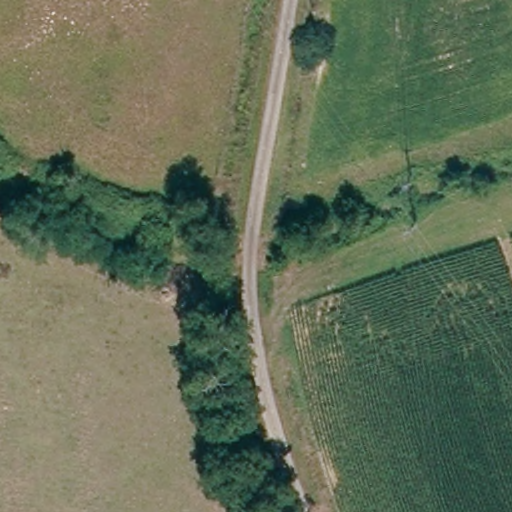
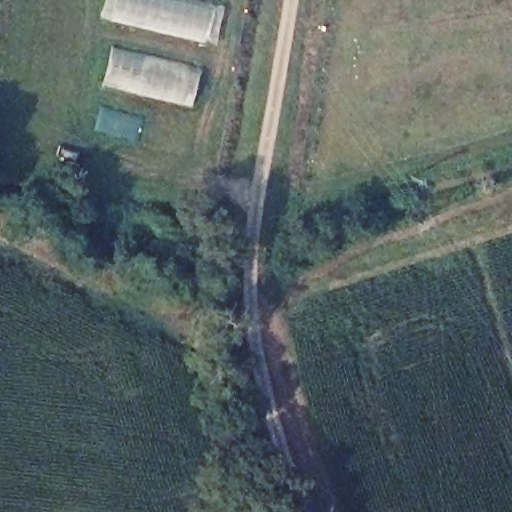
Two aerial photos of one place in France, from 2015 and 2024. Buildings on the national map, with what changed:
new [(207,42),(108,20),(112,0),(211,0),(216,1),(207,42)]
new [(191,106),(102,85),(111,46),(201,68),(191,106)]

